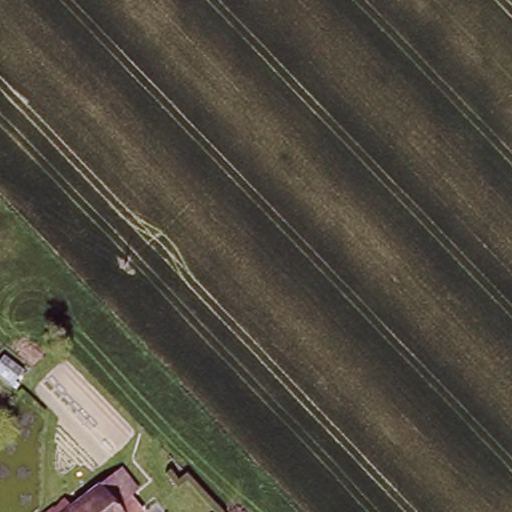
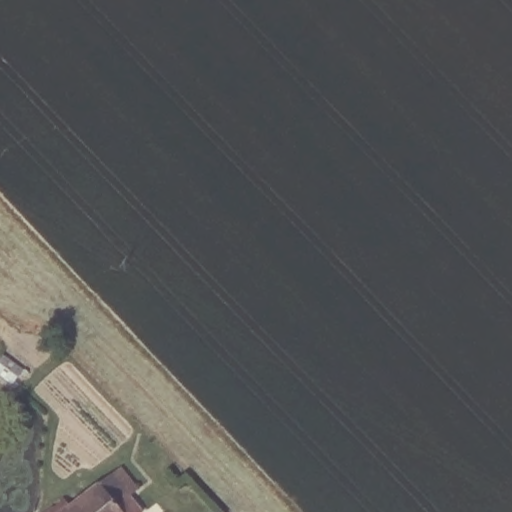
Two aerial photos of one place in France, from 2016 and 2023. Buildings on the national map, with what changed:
unchanged [(78,508),(120,475),(148,511),(146,512),(53,512),(70,498),(78,508)]

